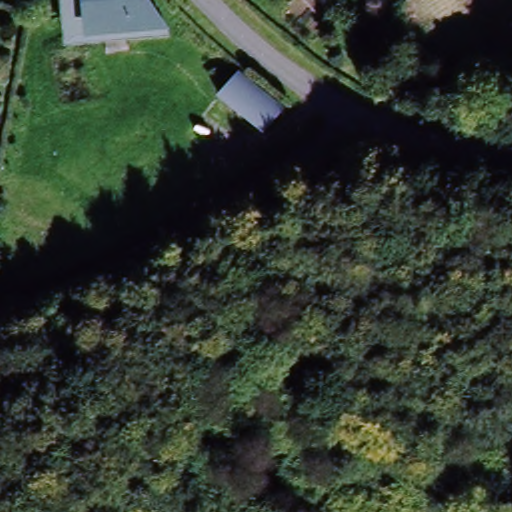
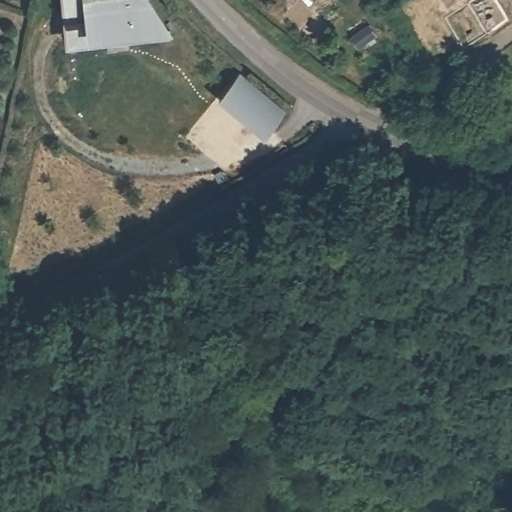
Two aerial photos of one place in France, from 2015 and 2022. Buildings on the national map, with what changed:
unchanged [(166,35),(65,49),(60,0),(158,0),(164,6),(166,35)]

